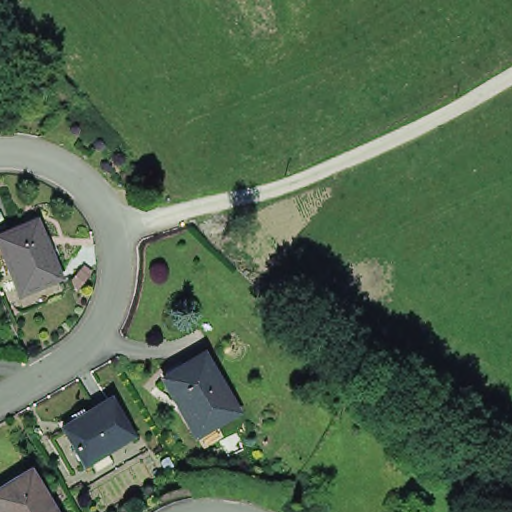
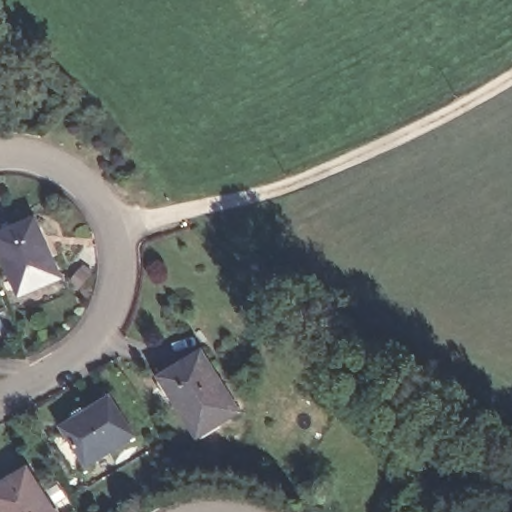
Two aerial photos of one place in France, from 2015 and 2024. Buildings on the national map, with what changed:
unchanged [(25,295),(1,238),(41,221),(65,278),(25,295)]
unchanged [(208,356),(242,412),(203,436),(169,379),(208,356)]
unchanged [(140,437),(91,467),(68,428),(79,421),(76,417),(88,410),(90,414),(116,398),(140,437)]
unchanged [(29,471),(55,512),(0,512),(0,490),(29,471)]

